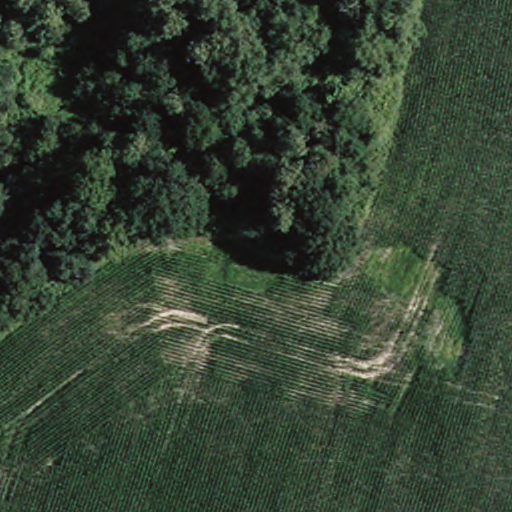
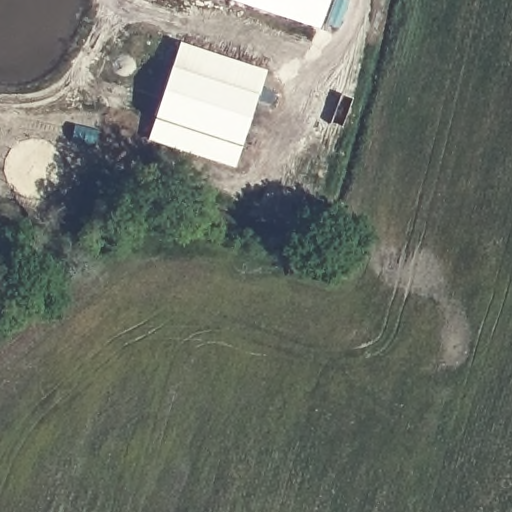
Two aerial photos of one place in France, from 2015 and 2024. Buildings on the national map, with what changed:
new [(225,0),(324,0),(314,29),(225,0)]
new [(233,172),(145,142),(177,44),(265,72),(233,172)]

